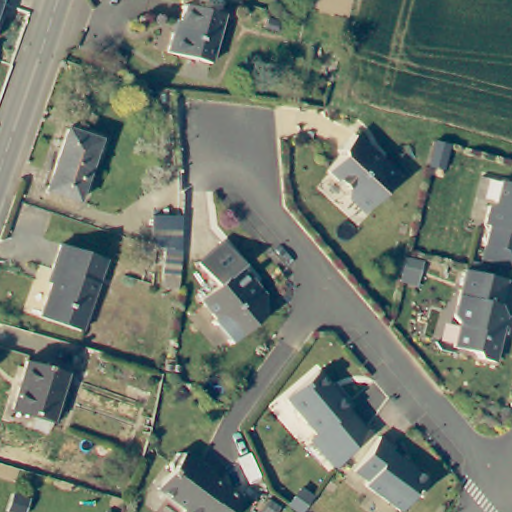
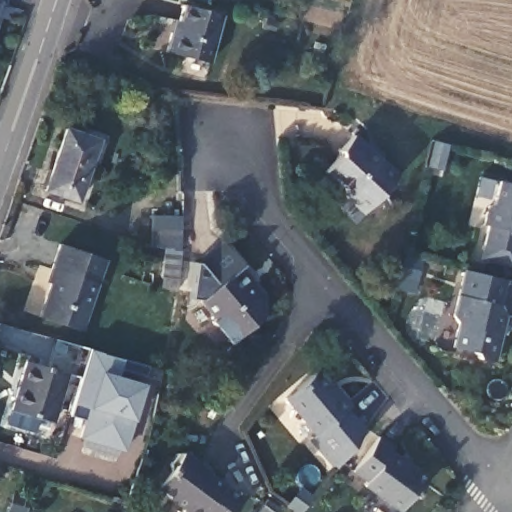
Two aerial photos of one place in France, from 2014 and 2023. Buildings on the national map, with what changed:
unchanged [(0,12),(0,0),(3,0),(0,12)]
unchanged [(170,32),(177,33),(182,4),(222,14),(211,64),(167,53),(170,32)]
unchanged [(66,130),(97,142),(76,203),(43,192),(66,130)]
unchanged [(350,200),(350,194),(330,175),(343,160),(343,155),(356,140),(371,152),(371,157),(382,167),(385,165),(401,178),(368,216),(350,200)]
unchanged [(487,245),(492,226),(488,225),(492,207),(497,203),(502,181),(512,183),(512,265),(486,258),(487,245)]
unchanged [(155,215),(184,219),(184,224),(183,238),(181,252),(158,249),(151,247),(155,215)]
unchanged [(38,315),(55,268),(51,267),(54,256),(59,243),(104,259),(100,270),(79,329),(38,315)]
unchanged [(234,345),(217,323),(220,321),(205,302),(222,288),(202,265),(225,243),(246,265),(240,271),(258,290),(261,288),(270,297),(267,318),(234,345)]
unchanged [(508,312),(498,361),(482,358),(477,351),(457,347),(462,323),(457,315),(468,271),(508,281),(502,307),(508,312)]
new [(146,377),(120,370),(117,376),(145,385),(132,422),(127,451),(79,439),(85,420),(70,416),(73,403),(89,350),(122,360),(148,367),(146,377)]
unchanged [(52,422),(12,410),(26,362),(67,374),(52,422)]
unchanged [(338,473),(312,442),(317,436),(287,402),(318,375),(352,407),(345,416),(368,433),(338,473)]
unchanged [(415,496),(403,512),(367,487),(370,482),(357,473),(381,438),(396,449),(392,453),(408,464),(407,466),(429,482),(417,498),(415,496)]
unchanged [(185,453),(204,467),(202,469),(245,500),(236,512),(185,512),(187,510),(166,495),(159,490),(172,472),(172,464),(177,455),(185,453)]

